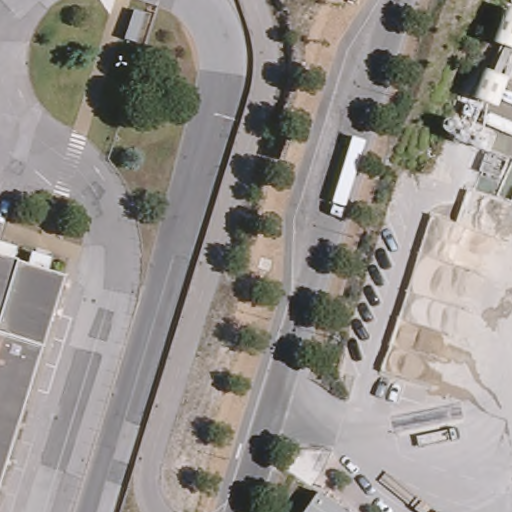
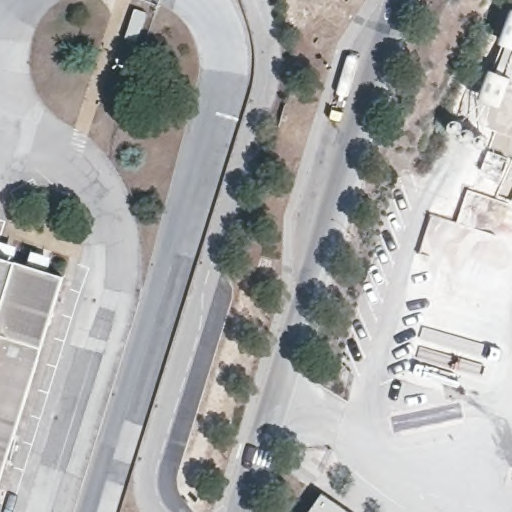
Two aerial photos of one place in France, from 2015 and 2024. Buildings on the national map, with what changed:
unchanged [(0,472),(0,254),(61,273),(0,472)]
unchanged [(357,512),(311,512),(326,491),(357,512)]

